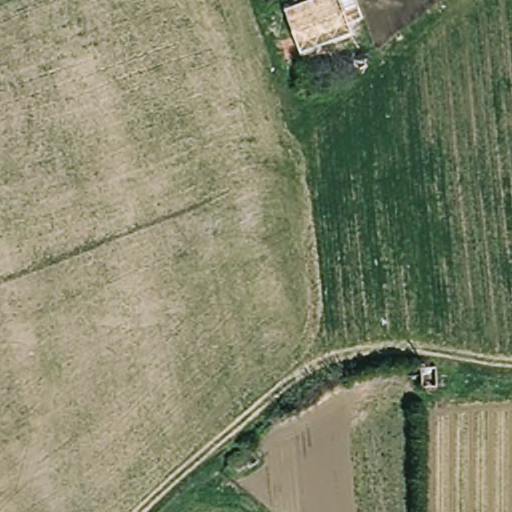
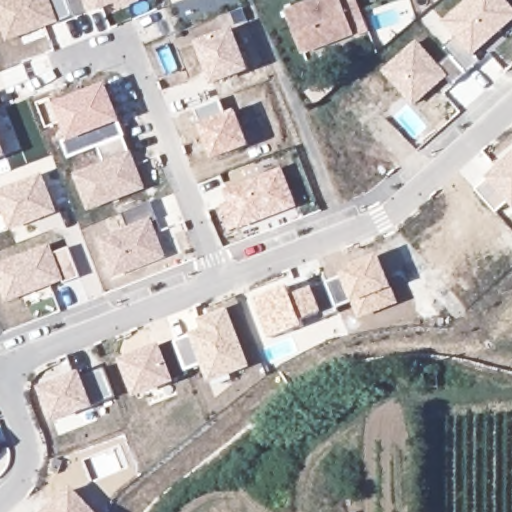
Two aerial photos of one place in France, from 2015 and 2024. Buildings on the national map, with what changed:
new [(141,1),(117,9),(115,4),(89,12),(75,18),(74,15),(59,21),(60,23),(7,43),(0,25),(0,0),(141,0),(141,1)]
unchanged [(339,2),(344,0),(355,0),(362,20),(349,25),(354,35),(303,55),(287,10),(313,0),(338,0),(339,2)]
new [(475,55),(480,62),(455,85),(447,77),(415,105),(381,69),(417,40),(441,65),(452,55),(445,47),(456,37),(442,22),(466,0),(506,0),(512,7),(512,21),(475,55)]
new [(435,0),(440,0),(436,4),(435,0)]
new [(250,71),(211,85),(195,41),(234,27),(250,71)]
new [(106,162),(99,148),(69,160),(63,141),(67,141),(55,105),(106,84),(121,122),(126,136),(123,137),(129,150),(131,150),(145,187),(88,210),(73,175),(106,162)]
new [(249,145),(212,158),(199,123),(200,122),(195,109),(220,99),(226,113),(236,110),(249,145)]
new [(8,156),(0,159),(0,137),(8,156)]
new [(497,213),(477,190),(489,179),(486,175),(512,152),(512,204),(510,201),(497,213)]
new [(296,205),(238,227),(229,231),(220,206),(229,203),(223,189),(282,166),(296,205)]
new [(10,231),(0,207),(0,191),(42,174),(57,212),(10,231)]
new [(122,214),(152,202),(158,221),(154,222),(167,256),(115,277),(99,239),(128,227),(122,214)]
new [(54,253),(69,247),(81,277),(65,283),(64,281),(7,303),(0,287),(0,263),(50,243),(54,253)]
new [(352,265),(379,254),(393,287),(400,304),(360,320),(354,302),(338,308),(340,311),(323,318),(322,313),(303,320),(305,327),(270,339),(254,300),(288,285),(292,293),(312,286),(341,275),(341,273),(354,268),(352,265)]
new [(201,328),(198,318),(228,307),(250,366),(207,383),(200,365),(185,370),(174,341),(190,333),(201,328)]
new [(175,380),(133,397),(118,359),(161,342),(175,380)]
unchanged [(424,388),(423,368),(438,367),(439,387),(424,388)]
new [(114,397),(94,405),(95,406),(52,424),(38,388),(81,370),(84,376),(103,368),(114,397)]
unchanged [(239,471),(232,463),(240,456),(247,465),(239,471)]
new [(89,512),(43,512),(67,489),(89,512)]

